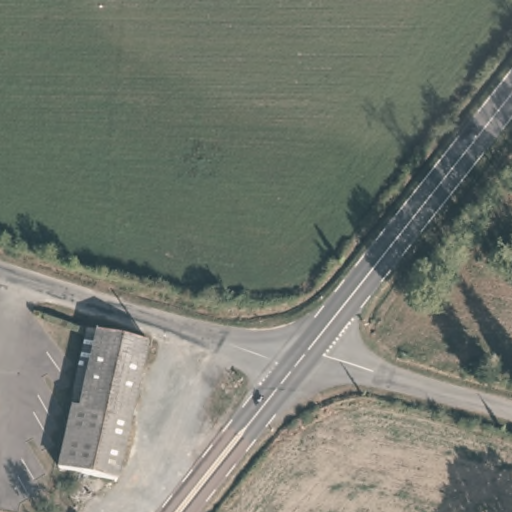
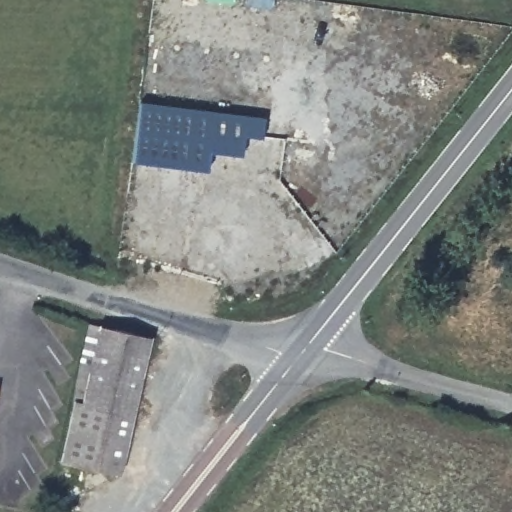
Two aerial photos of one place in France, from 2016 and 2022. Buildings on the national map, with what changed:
new [(262,139),(244,137),(241,156),(209,151),(207,171),(132,162),(139,100),(263,117),(262,139)]
unchanged [(119,478),(70,466),(85,407),(81,390),(94,325),(152,342),(119,478)]

